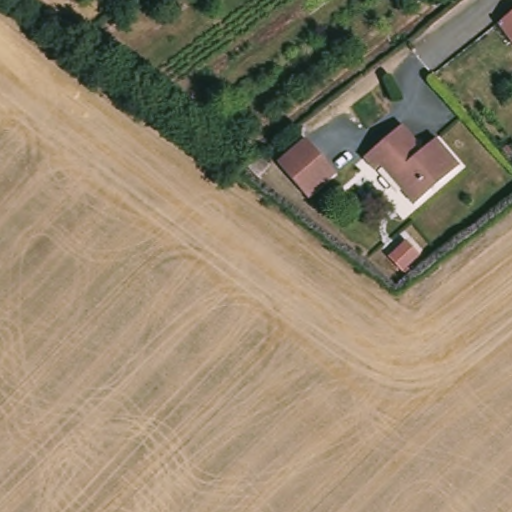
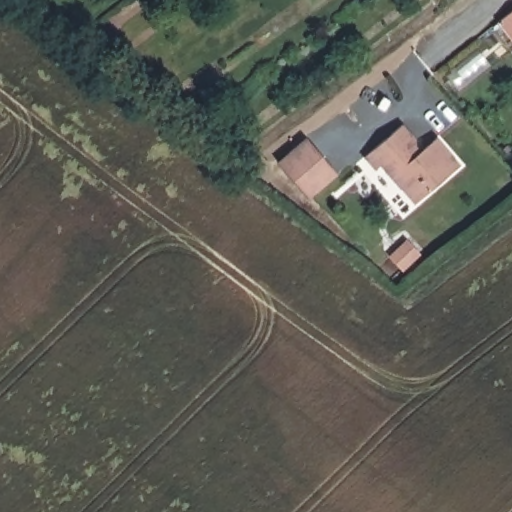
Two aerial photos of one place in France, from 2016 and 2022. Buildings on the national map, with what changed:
unchanged [(512,43),(494,20),(512,6),(512,43)]
unchanged [(371,174),(360,163),(399,130),(413,145),(408,150),(414,156),(432,141),(453,167),(410,203),(379,168),(371,174)]
unchanged [(305,198),(274,162),(303,138),(333,174),(305,198)]

